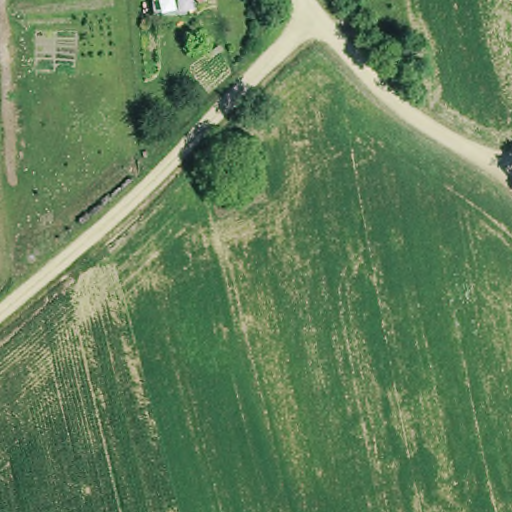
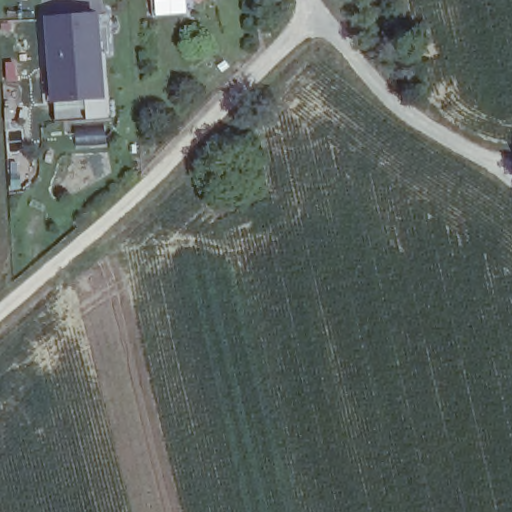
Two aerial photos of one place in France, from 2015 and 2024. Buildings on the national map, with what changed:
unchanged [(197,0),(202,0),(200,2),(197,0)]
new [(106,99),(50,102),(44,17),(101,12),(106,99)]

